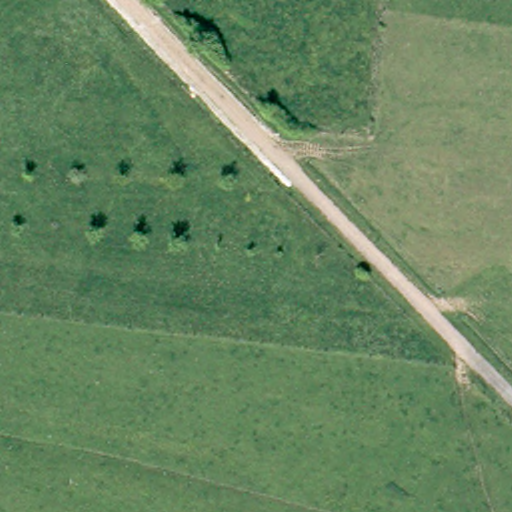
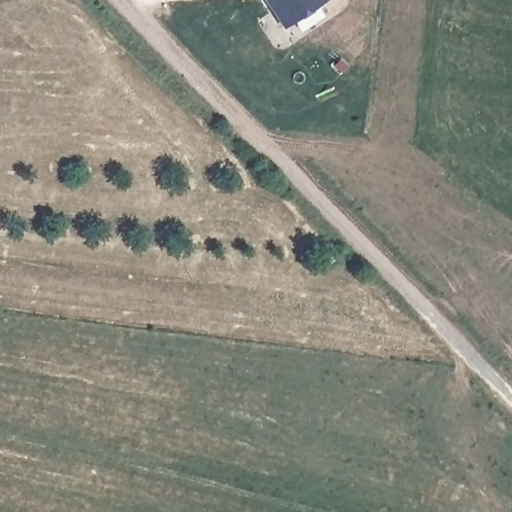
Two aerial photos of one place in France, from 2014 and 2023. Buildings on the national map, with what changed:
new [(283,28),(265,0),(327,0),(283,28)]

